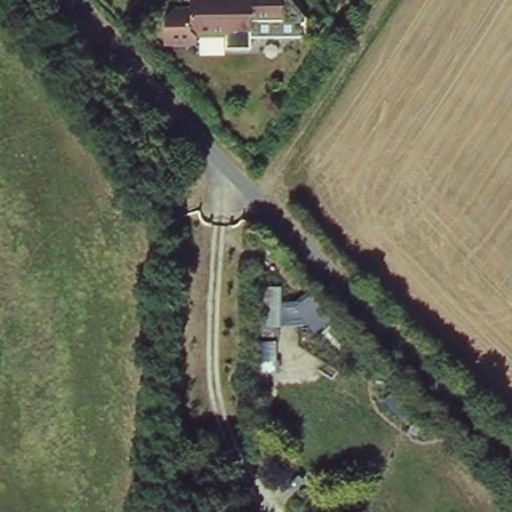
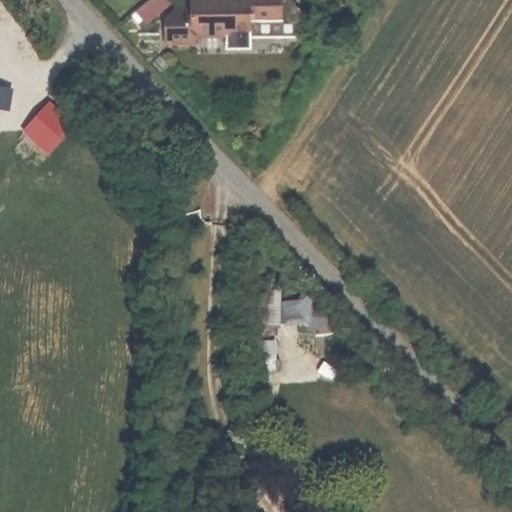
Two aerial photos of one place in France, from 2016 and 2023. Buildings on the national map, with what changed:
unchanged [(251,30),(251,39),(232,39),(227,44),(195,43),(189,37),(191,0),(285,0),(284,31),(251,30)]
new [(11,95),(10,111),(0,111),(0,93),(11,95)]
new [(47,105),(71,127),(46,157),(23,136),(47,105)]

